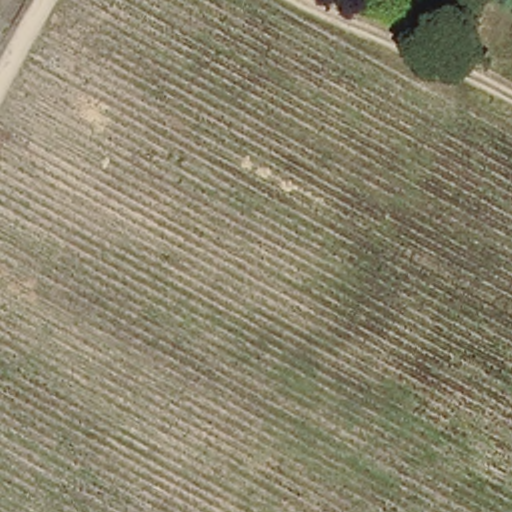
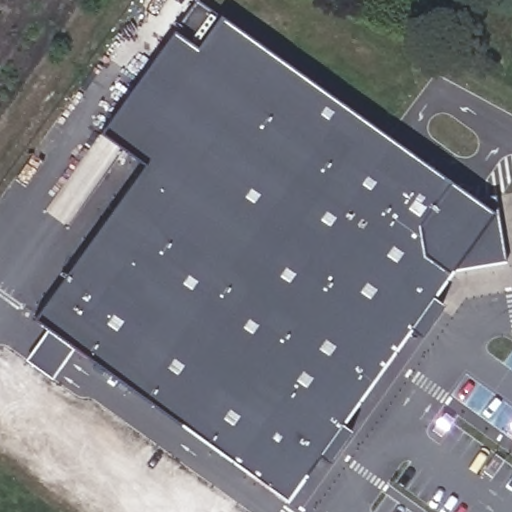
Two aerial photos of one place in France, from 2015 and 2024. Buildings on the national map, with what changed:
new [(477,204),(499,200),(511,268),(456,277),(289,507),(36,324),(148,170),(104,138),(201,4),(477,204)]
new [(432,166),(438,171),(436,174),(429,170),(432,166)]
new [(437,303),(447,310),(424,342),(414,335),(437,303)]
new [(345,429),(355,436),(332,468),(322,461),(345,429)]

